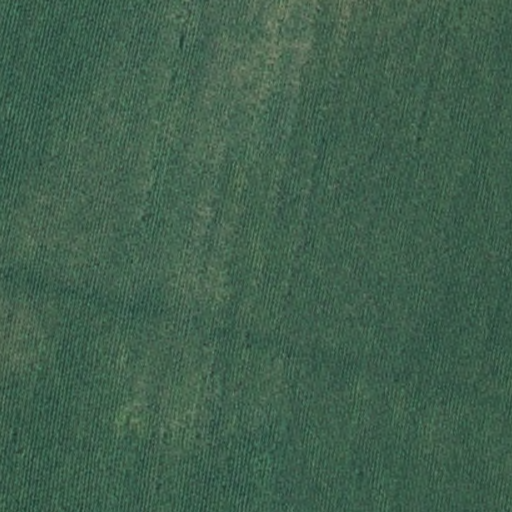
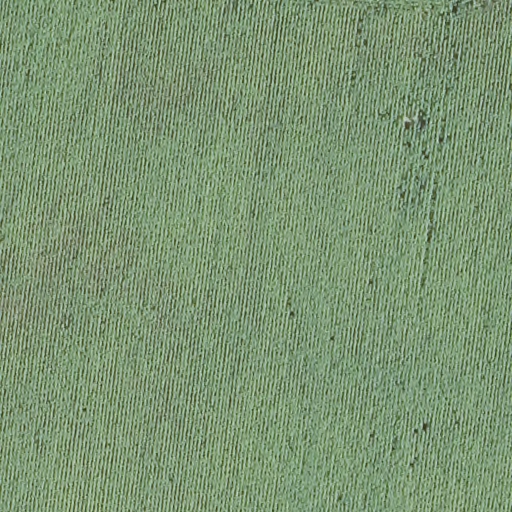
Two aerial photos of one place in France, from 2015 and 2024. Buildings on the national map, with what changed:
[]

